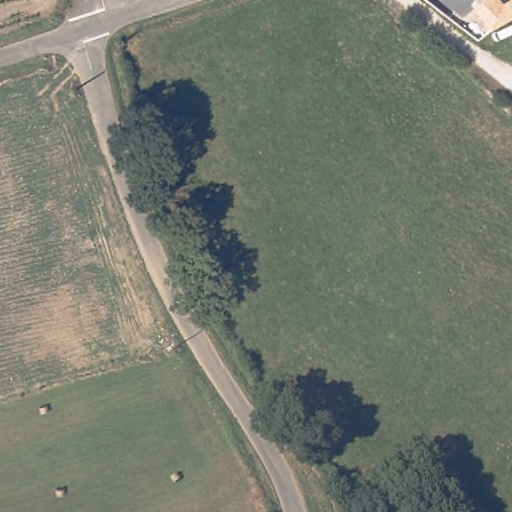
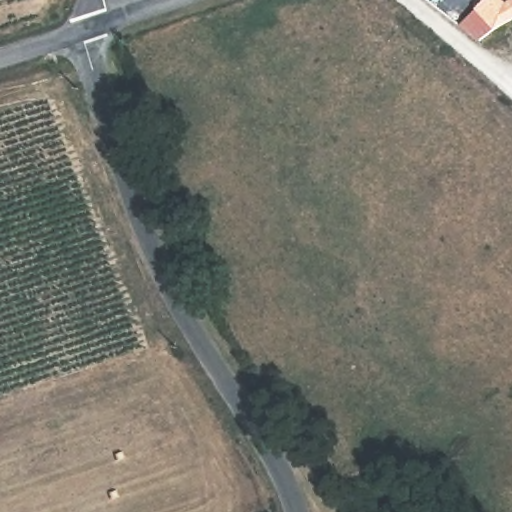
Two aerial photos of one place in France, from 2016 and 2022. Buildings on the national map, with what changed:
unchanged [(502,0),(503,2),(508,0),(512,0),(512,24),(495,33),(474,11),(484,0),(502,0)]

